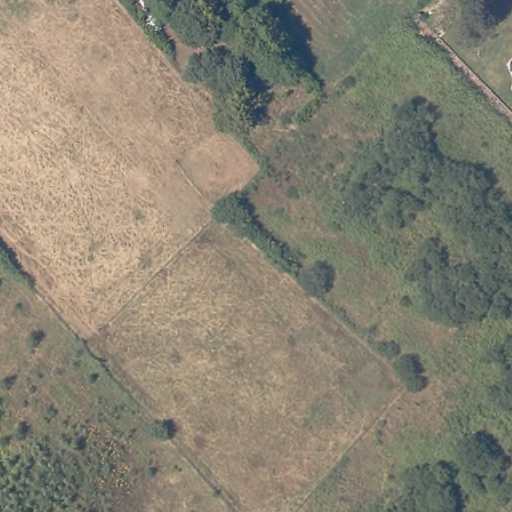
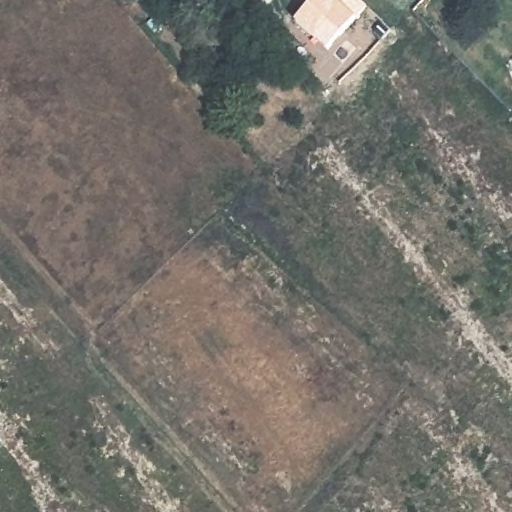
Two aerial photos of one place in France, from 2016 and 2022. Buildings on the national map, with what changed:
new [(311,0),(364,0),(367,2),(329,46),(296,17),(311,0)]

